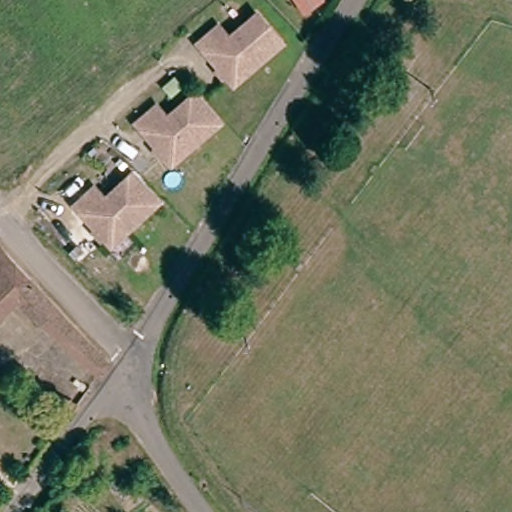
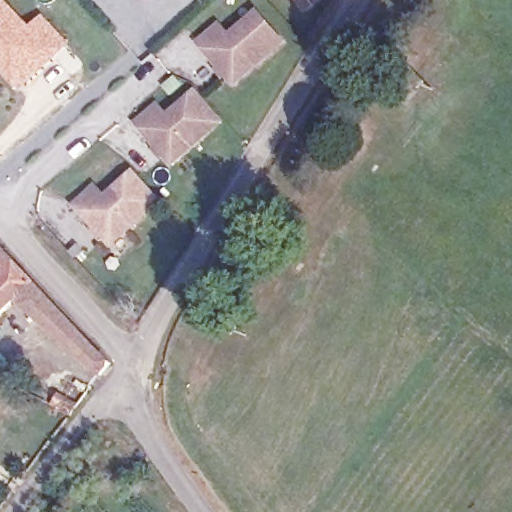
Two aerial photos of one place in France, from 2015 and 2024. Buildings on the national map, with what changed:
new [(1,59),(0,58),(0,0),(7,0),(34,28),(46,16),(71,41),(57,54),(25,84),(18,77),(1,59)]
unchanged [(293,0),(310,0),(301,9),(293,0)]
unchanged [(233,88),(196,46),(218,26),(228,39),(253,16),(279,47),(233,88)]
unchanged [(158,149),(136,124),(155,106),(166,119),(192,95),(220,126),(199,145),(174,168),(158,149)]
unchanged [(135,179),(159,207),(115,246),(86,214),(79,207),(102,185),(110,193),(114,198),(135,179)]
unchanged [(20,307),(0,323),(0,251),(110,367),(100,381),(20,307)]

